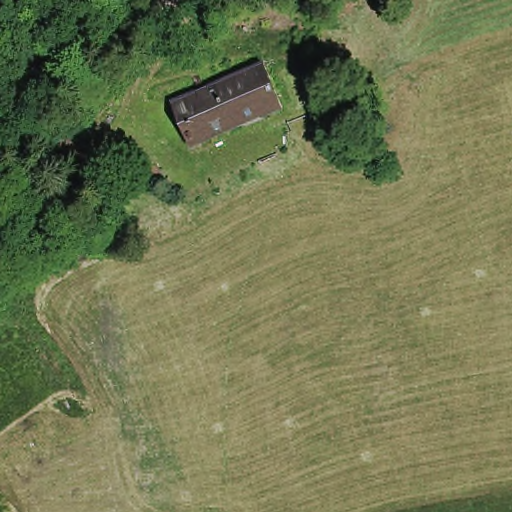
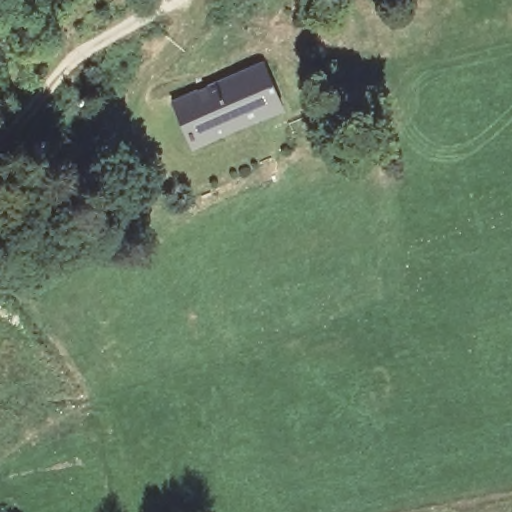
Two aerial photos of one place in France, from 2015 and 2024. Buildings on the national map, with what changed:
unchanged [(286,106),(267,114),(266,113),(263,106),(248,71),(261,65),(268,63),(286,106)]
unchanged [(227,80),(248,71),(263,106),(266,113),(246,121),(227,80)]
unchanged [(227,80),(246,121),(196,143),(178,102),(227,80)]
unchanged [(80,153),(69,165),(60,156),(51,148),(64,137),(76,149),(80,153)]

